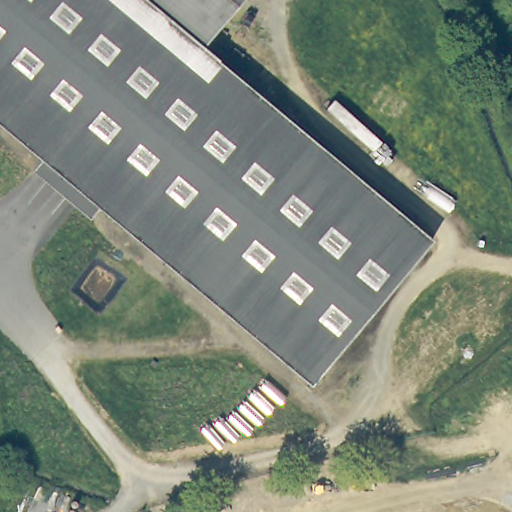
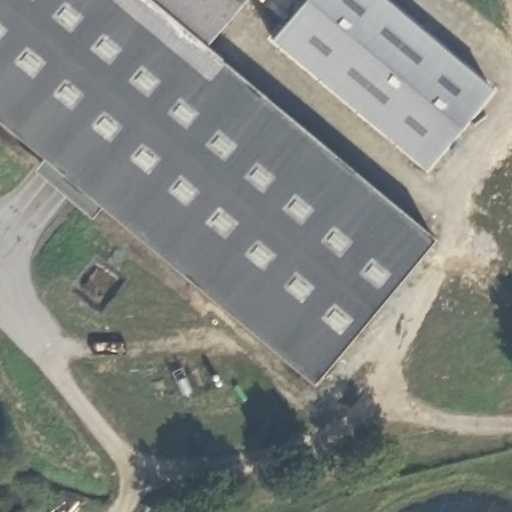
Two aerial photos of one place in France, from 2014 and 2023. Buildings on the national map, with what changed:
unchanged [(435,236),(314,380),(0,116),(0,0),(156,0),(205,41),(212,46),(435,236)]
unchanged [(205,41),(156,0),(240,0),(205,41)]
new [(426,169),(270,38),(302,0),(388,0),(494,88),(426,169)]

